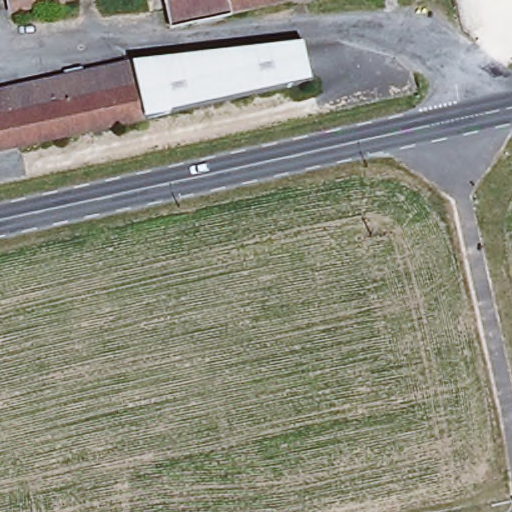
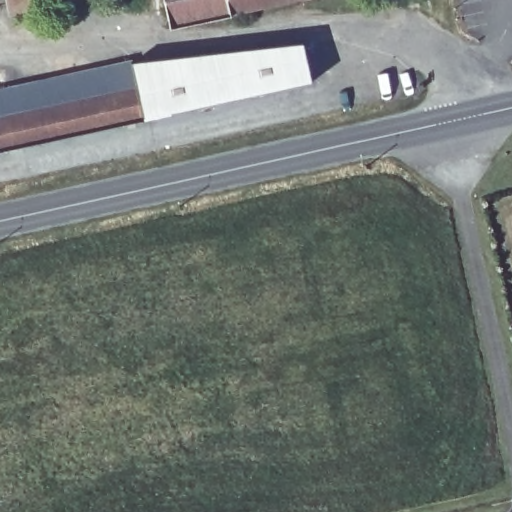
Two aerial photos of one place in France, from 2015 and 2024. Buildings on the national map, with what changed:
unchanged [(68,0),(11,12),(8,0),(68,0)]
unchanged [(290,0),(171,25),(165,0),(290,0)]
unchanged [(163,115),(152,60),(305,44),(314,82),(163,115)]
unchanged [(0,150),(0,91),(131,62),(152,60),(163,115),(0,150)]

